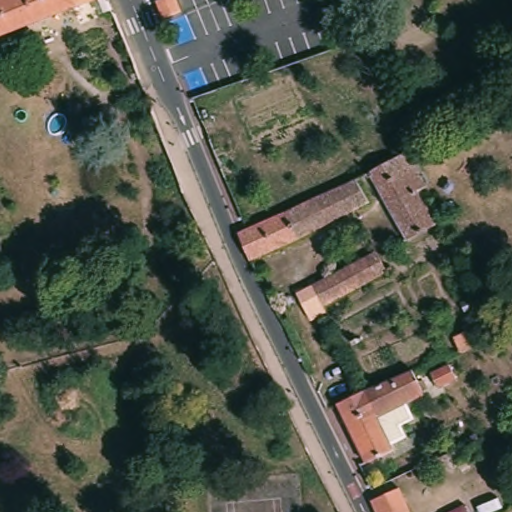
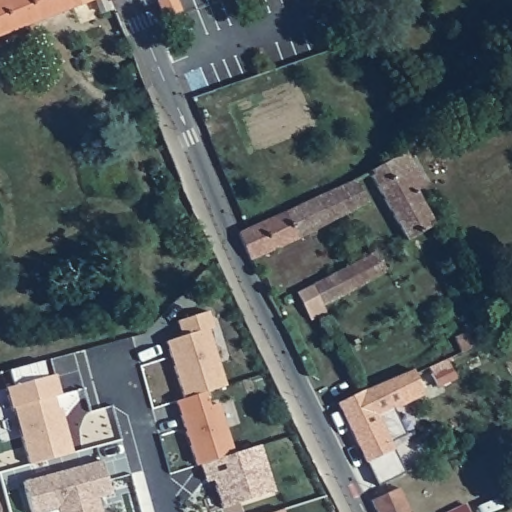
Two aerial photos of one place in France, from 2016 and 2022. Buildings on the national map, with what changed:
unchanged [(0,0),(94,0),(0,37),(0,0)]
unchanged [(162,3),(170,0),(179,0),(184,14),(168,21),(162,3)]
unchanged [(187,9),(195,5),(199,15),(193,18),(190,19),(187,9)]
unchanged [(366,173),(399,155),(402,154),(404,154),(411,167),(413,165),(424,186),(413,192),(432,225),(404,240),(366,173)]
unchanged [(376,200),(302,236),(255,255),(246,230),(253,227),(342,185),(358,178),(362,175),(376,200)]
unchanged [(314,322),(298,293),(377,252),(390,272),(325,307),(328,313),(314,322)]
new [(182,338),(177,321),(208,312),(212,329),(207,330),(225,386),(205,393),(184,399),(166,342),(182,338)]
unchanged [(461,338),(472,333),(481,350),(469,356),(461,338)]
unchanged [(438,375),(456,366),(464,380),(445,389),(438,375)]
unchanged [(394,426),(401,437),(388,444),(391,450),(364,463),(335,405),(353,396),(364,391),(408,371),(411,377),(420,395),(399,405),(407,419),(394,426)]
new [(73,453),(28,465),(13,409),(10,410),(5,388),(54,375),(59,395),(54,396),(57,410),(61,409),(73,453)]
new [(184,399),(205,393),(209,405),(218,402),(235,453),(200,465),(196,465),(177,401),(184,399)]
unchanged [(479,466),(468,448),(481,442),(477,437),(484,433),(487,439),(489,438),(498,455),(479,466)]
new [(205,483),(200,465),(235,453),(260,445),(274,492),(224,508),(213,480),(205,483)]
unchanged [(474,467),(463,473),(457,462),(468,456),(474,467)]
new [(58,509),(44,512),(32,512),(23,482),(100,461),(109,495),(95,498),(99,512),(58,512),(58,509)]
unchanged [(397,493),(405,512),(371,512),(369,506),(397,493)]
new [(280,510),(281,512),(274,512),(280,510)]
unchanged [(463,510),(463,512),(459,512),(463,510)]

